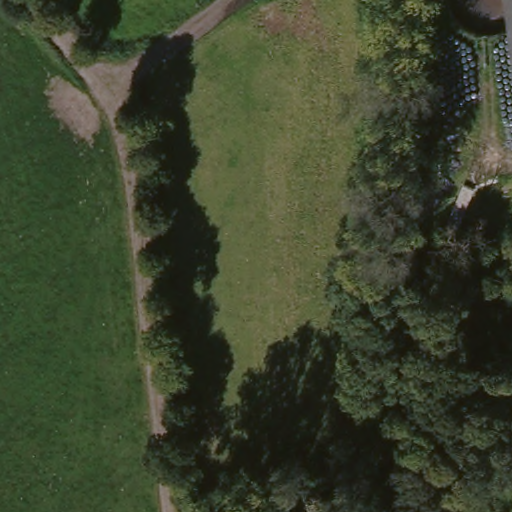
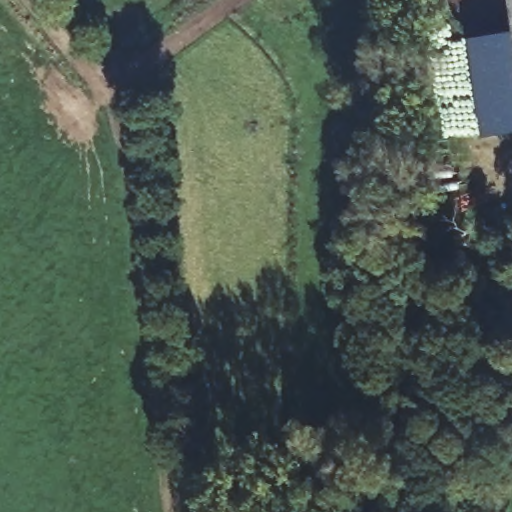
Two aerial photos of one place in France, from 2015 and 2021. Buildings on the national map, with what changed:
unchanged [(506,0),(512,0),(512,40),(510,24),(506,0)]
new [(512,40),(512,135),(480,142),(467,44),(512,39),(512,40)]

